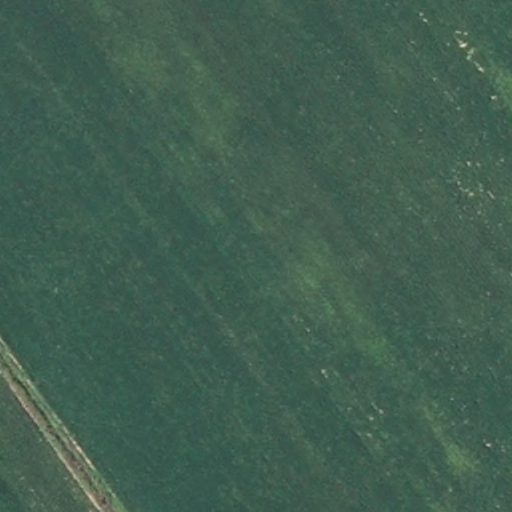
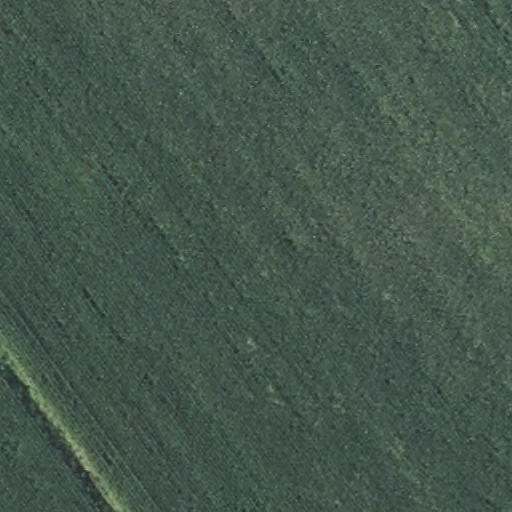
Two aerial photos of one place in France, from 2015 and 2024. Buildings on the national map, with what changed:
[]

